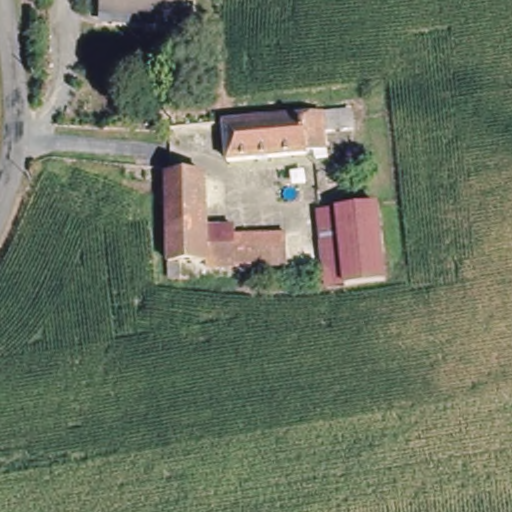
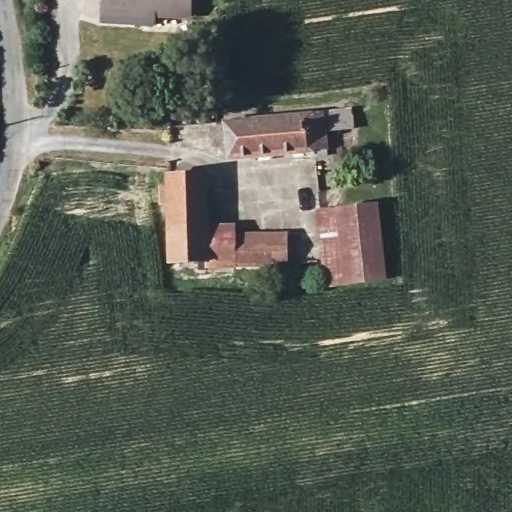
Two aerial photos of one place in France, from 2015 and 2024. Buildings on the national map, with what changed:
unchanged [(152,8),(150,19),(93,15),(95,0),(186,0),(184,11),(152,8)]
unchanged [(221,163),(218,120),(318,113),(349,110),(351,132),(320,135),(323,157),(221,163)]
unchanged [(209,171),(208,176),(226,175),(227,208),(210,207),(210,209),(213,222),(235,221),(236,229),(300,230),(302,243),(315,242),(314,262),(235,266),(235,272),(172,277),(166,203),(157,203),(157,184),(165,184),(164,171),(209,171)]
unchanged [(324,284),(315,206),(336,204),(377,199),(386,278),(343,282),(324,284)]

